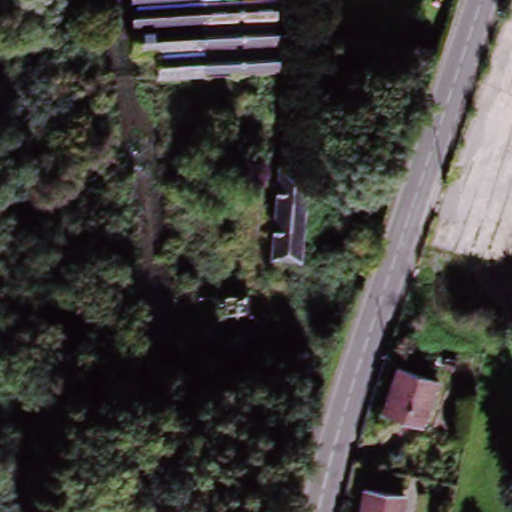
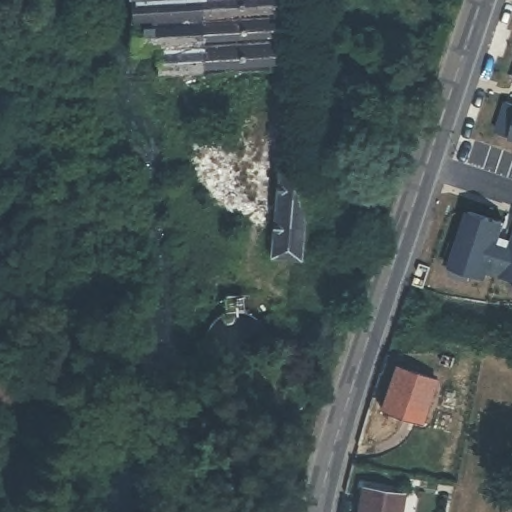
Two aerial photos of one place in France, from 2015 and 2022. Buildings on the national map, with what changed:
unchanged [(277,71),(157,78),(157,48),(133,50),(130,0),(273,0),(277,71)]
new [(502,102),(512,104),(512,137),(497,131),(502,102)]
unchanged [(271,262),(277,174),(307,174),(300,264),(271,262)]
new [(445,261),(454,238),(462,241),(471,213),(506,224),(501,237),(512,241),(512,274),(490,268),(487,276),(477,273),(477,281),(458,276),(460,268),(445,261)]
unchanged [(395,366),(433,378),(419,422),(380,409),(395,366)]
unchanged [(397,512),(357,512),(362,486),(400,494),(397,512)]

